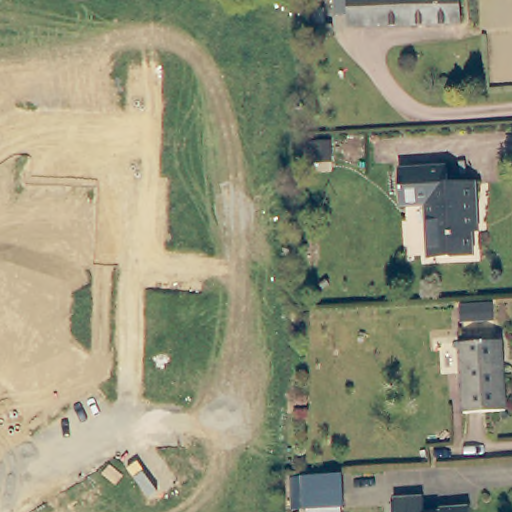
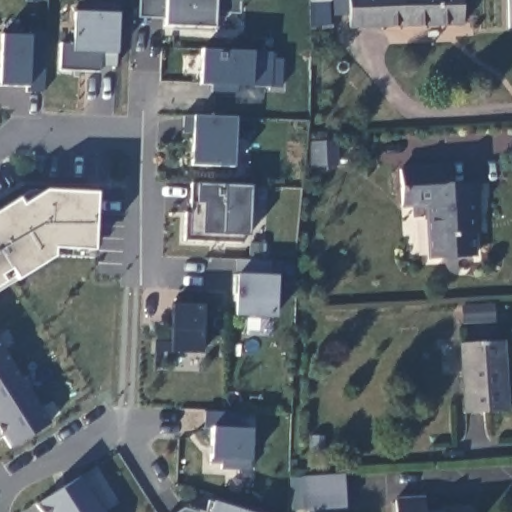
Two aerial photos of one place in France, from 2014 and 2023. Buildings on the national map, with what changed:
new [(216,12),(215,28),(167,26),(166,19),(139,17),(140,0),(240,0),(240,12),(216,12)]
unchanged [(400,23),(377,21),(348,22),(348,0),(461,0),(461,22),(400,23)]
new [(100,67),(99,54),(71,52),(73,10),(92,11),(92,3),(118,4),(118,15),(116,54),(116,67),(100,67)]
new [(28,86),(0,86),(0,73),(2,35),(27,36),(27,31),(47,30),(44,93),(25,93),(28,86)]
new [(252,86),(240,86),(236,93),(210,92),(213,85),(200,85),(201,50),(252,52),(272,54),(272,59),(282,60),(282,87),(252,86)]
new [(236,118),(232,167),(190,165),(194,117),(236,118)]
unchanged [(326,168),(305,169),(306,146),(326,145),(326,168)]
unchanged [(449,182),(477,181),(480,219),(475,219),(477,254),(432,256),(429,203),(404,204),(401,169),(449,166),(449,182)]
new [(187,214),(190,214),(191,184),(255,187),(253,211),(250,211),(250,234),(243,234),(242,243),(185,240),(187,214)]
new [(53,249),(52,256),(17,277),(10,269),(1,275),(4,280),(0,283),(0,209),(17,198),(22,204),(45,189),(94,192),(91,250),(53,249)]
new [(269,275),(277,275),(275,317),(232,316),(235,275),(236,260),(270,261),(269,275)]
new [(157,315),(171,315),(172,304),(204,305),(201,353),(173,352),(155,351),(157,315)]
unchanged [(506,338),(510,409),(467,411),(463,341),(506,338)]
new [(0,431),(0,342),(49,421),(12,446),(1,430),(0,431)]
new [(239,429),(251,428),(249,460),(249,470),(221,470),(222,460),(210,460),(210,432),(204,433),(204,411),(237,412),(239,429)]
new [(35,505),(82,475),(105,512),(38,512),(35,505)]
unchanged [(297,493),(337,490),(339,512),(298,512),(297,493)]
unchanged [(423,510),(441,510),(441,505),(471,502),(471,512),(396,512),(394,495),(423,494),(423,510)]
new [(212,500),(247,512),(208,512),(212,500)]
new [(184,508),(194,512),(178,512),(184,508)]

